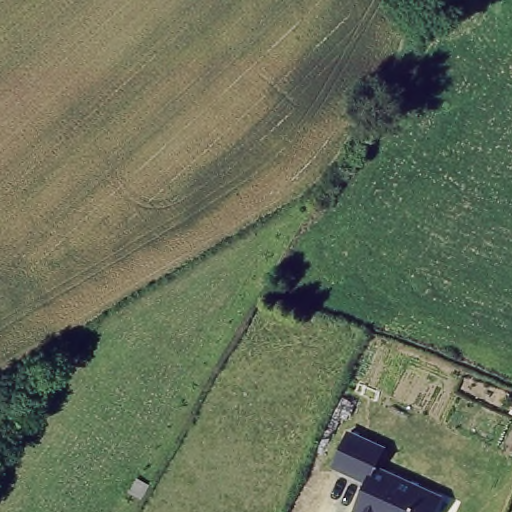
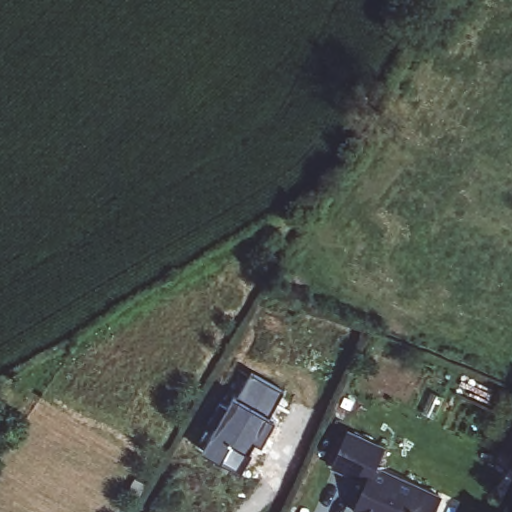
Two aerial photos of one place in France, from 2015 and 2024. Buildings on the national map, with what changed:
new [(252,373),(285,391),(270,417),(239,399),(252,373)]
new [(222,462),(204,450),(235,397),(239,399),(270,417),(277,420),(262,445),(256,441),(250,452),(252,454),(242,473),(222,462)]
unchanged [(375,466),(442,496),(434,512),(353,512),(365,480),(332,465),(348,430),(385,445),(375,466)]

